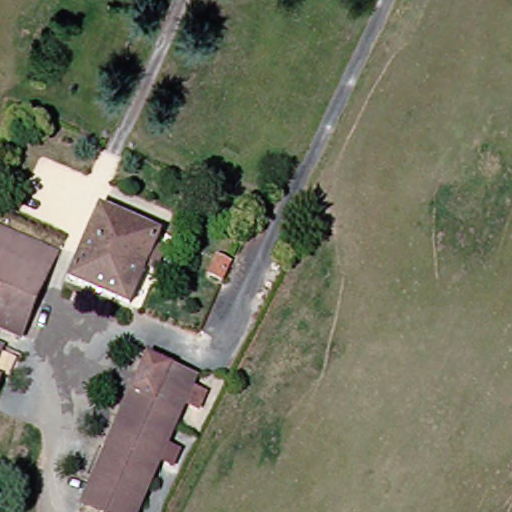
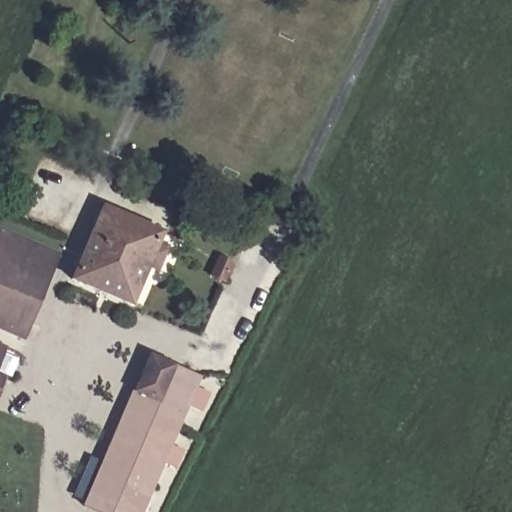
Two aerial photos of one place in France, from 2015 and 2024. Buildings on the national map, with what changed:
unchanged [(64,282),(98,208),(159,233),(154,244),(164,249),(155,271),(144,266),(125,308),(64,282)]
unchanged [(34,294),(14,285),(0,315),(0,234),(51,256),(34,294)]
unchanged [(213,251),(228,258),(219,278),(205,272),(213,251)]
unchanged [(0,334),(0,315),(14,285),(34,294),(13,339),(0,334)]
unchanged [(146,357),(193,378),(150,472),(102,453),(146,357)]
unchanged [(131,512),(78,512),(76,512),(102,453),(150,472),(131,512)]

